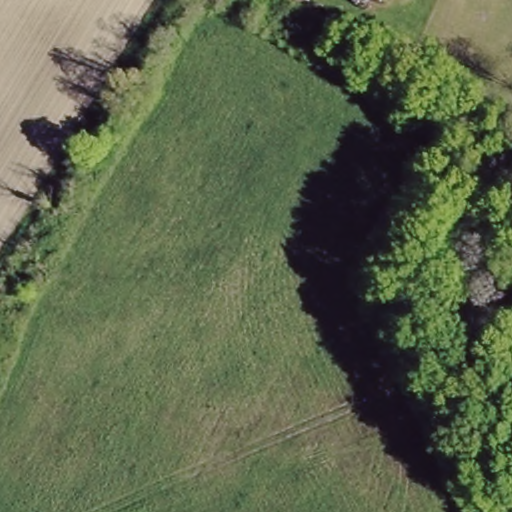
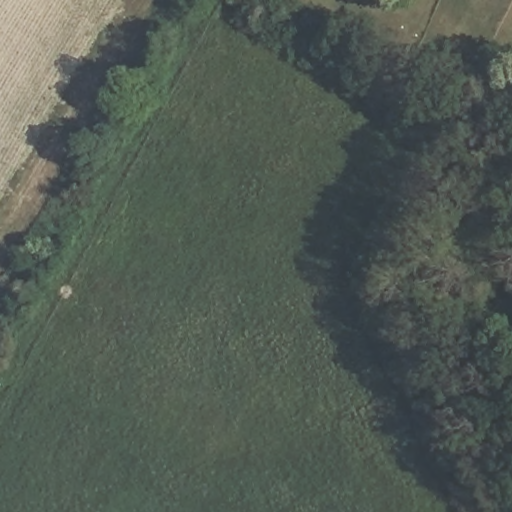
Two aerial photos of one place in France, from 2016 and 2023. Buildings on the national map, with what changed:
[]

